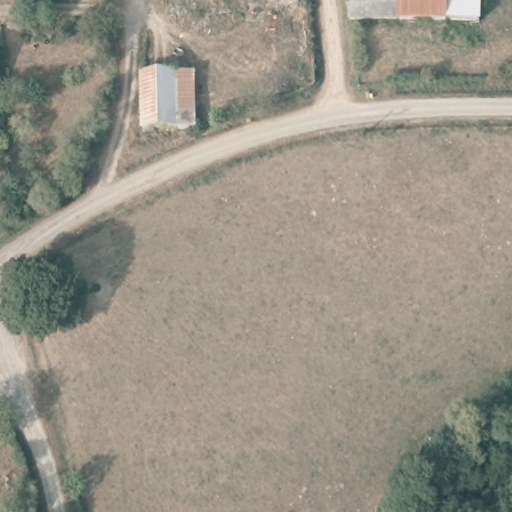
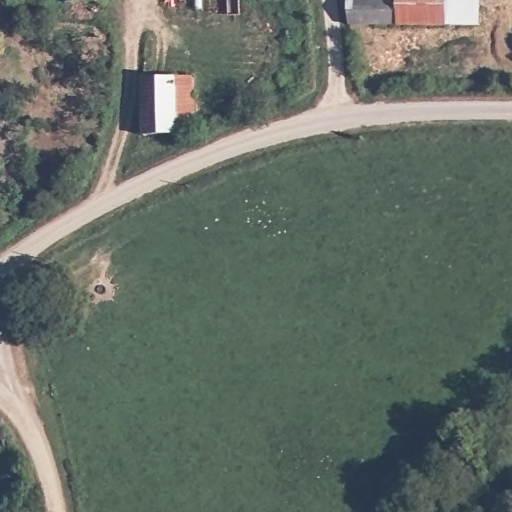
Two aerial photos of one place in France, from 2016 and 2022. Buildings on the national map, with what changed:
unchanged [(402,0),(403,15),(350,17),(349,0),(402,0)]
unchanged [(483,0),(482,20),(403,15),(402,0),(483,0)]
unchanged [(181,136),(171,70),(192,67),(201,132),(181,136)]
unchanged [(147,142),(137,74),(171,70),(181,136),(147,142)]

